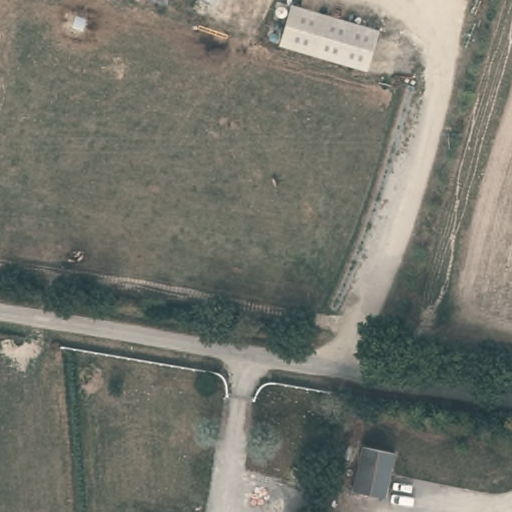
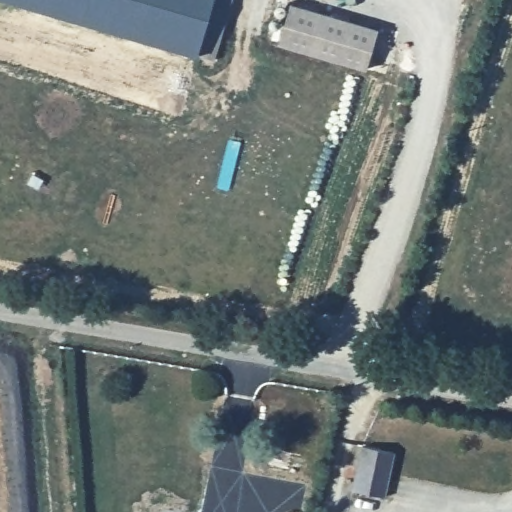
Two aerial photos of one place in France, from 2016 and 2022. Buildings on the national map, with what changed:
new [(215,61),(197,57),(0,0),(233,0),(215,61)]
unchanged [(291,3),(379,30),(366,69),(277,44),(291,3)]
unchanged [(394,451),(386,495),(356,490),(364,445),(394,451)]

